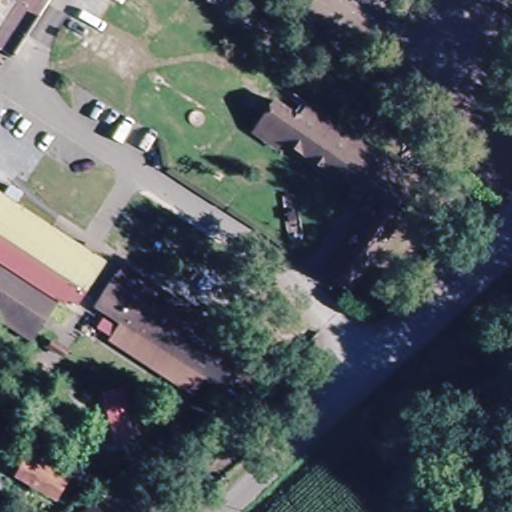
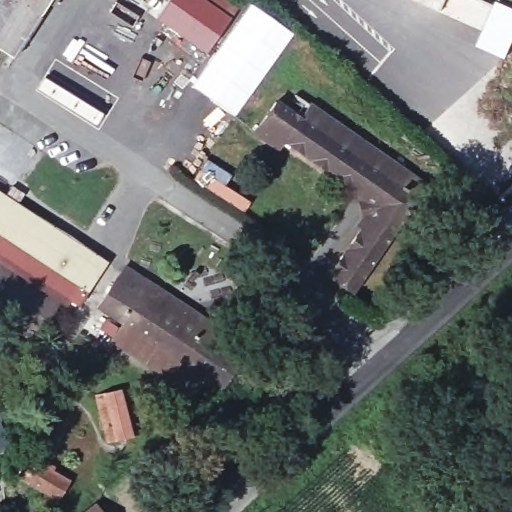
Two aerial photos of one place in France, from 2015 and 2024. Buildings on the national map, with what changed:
unchanged [(22,5),(0,39),(0,0),(62,0),(46,22),(22,5)]
new [(232,0),(240,6),(205,53),(155,18),(168,0),(232,0)]
new [(250,3),(293,33),(234,116),(191,85),(250,3)]
unchanged [(365,208),(362,198),(355,193),(360,186),(287,137),(281,144),(257,126),(263,119),(280,95),(305,113),(315,99),(432,182),(356,287),(332,270),(365,223),(360,218),(365,208)]
new [(207,158),(232,175),(226,184),(250,200),(242,212),(194,178),(207,158)]
unchanged [(11,247),(0,239),(0,196),(115,272),(95,303),(81,294),(11,247)]
unchanged [(0,262),(0,239),(11,247),(0,262)]
unchanged [(67,311),(50,337),(0,304),(0,277),(5,270),(14,257),(75,299),(67,311)]
unchanged [(242,370),(223,399),(207,388),(200,400),(196,405),(116,352),(120,346),(127,335),(120,330),(99,316),(112,296),(126,275),(220,336),(250,357),(242,370)]
unchanged [(130,389),(140,436),(106,444),(96,396),(130,389)]
unchanged [(25,464),(65,484),(55,502),(15,482),(25,464)]
unchanged [(96,512),(94,512),(95,511),(96,512)]

